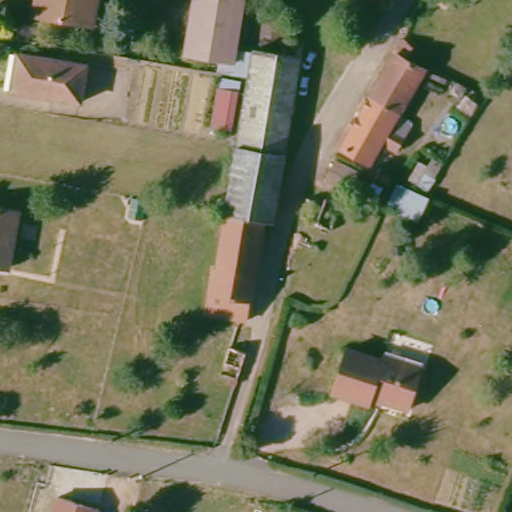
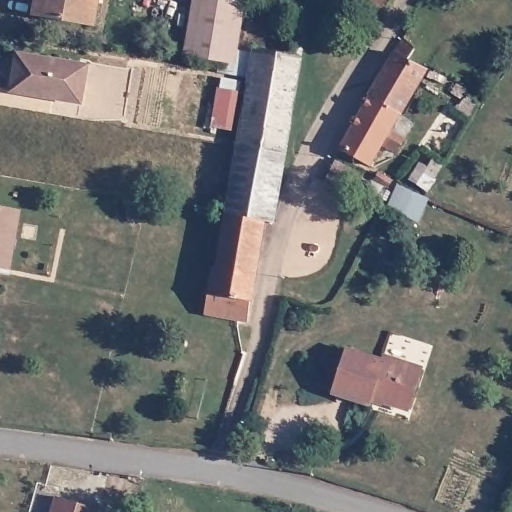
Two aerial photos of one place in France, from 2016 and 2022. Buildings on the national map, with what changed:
unchanged [(100,0),(94,30),(34,20),(38,0),(100,0)]
unchanged [(193,60),(202,0),(251,0),(242,67),(193,60)]
unchanged [(392,0),(381,13),(369,0),(392,0)]
unchanged [(403,112),(374,93),(405,40),(419,48),(426,73),(403,112)]
unchanged [(260,51),(286,58),(294,41),(311,47),(299,99),(252,85),(260,51)]
unchanged [(87,67),(81,102),(18,90),(20,74),(15,72),(18,55),(87,67)]
unchanged [(299,99),(295,120),(248,106),(252,85),(299,99)]
unchanged [(403,112),(413,119),(402,137),(392,132),(371,170),(339,150),(374,93),(403,112)]
unchanged [(286,165),(237,152),(248,106),(295,120),(286,165)]
unchanged [(271,230),(256,229),(221,224),(237,152),(286,165),(271,230)]
unchanged [(359,174),(346,198),(326,187),(341,161),(359,174)]
unchanged [(16,220),(8,274),(0,272),(0,217),(16,220)]
unchanged [(236,322),(208,316),(210,296),(191,292),(198,247),(212,247),(218,223),(221,224),(256,229),(236,322)]
unchanged [(411,409),(376,398),(374,404),(336,394),(349,348),(387,358),(388,353),(422,363),(411,409)]
unchanged [(63,497),(101,510),(100,512),(58,512),(63,497)]

